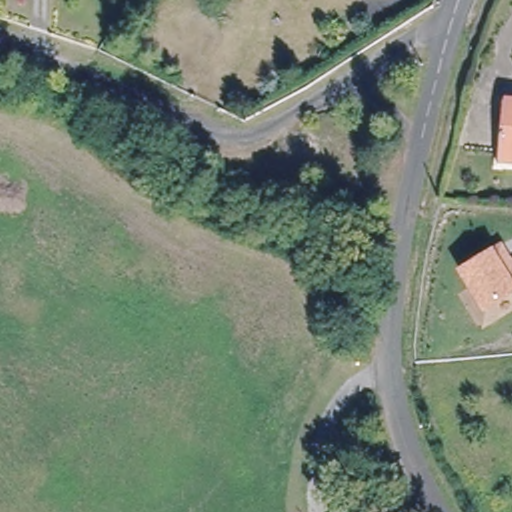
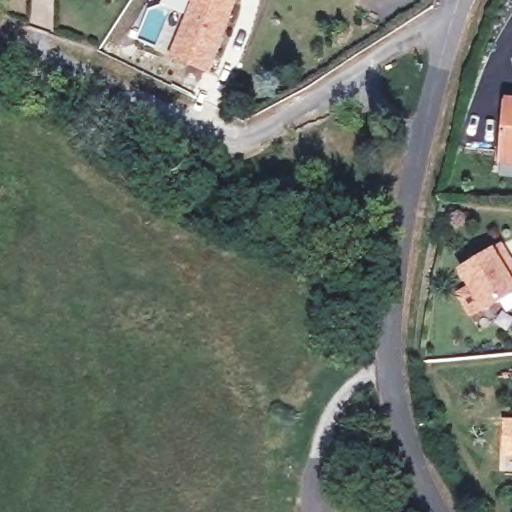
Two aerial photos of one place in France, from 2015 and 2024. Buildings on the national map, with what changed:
new [(192,2),(185,0),(237,0),(209,72),(174,60),(170,52),(192,2)]
unchanged [(501,158),(503,106),(504,98),(512,99),(512,159),(501,158)]
unchanged [(503,242),(512,258),(512,296),(482,314),(457,271),(503,242)]
new [(506,424),(512,424),(512,454),(505,454),(506,424)]

